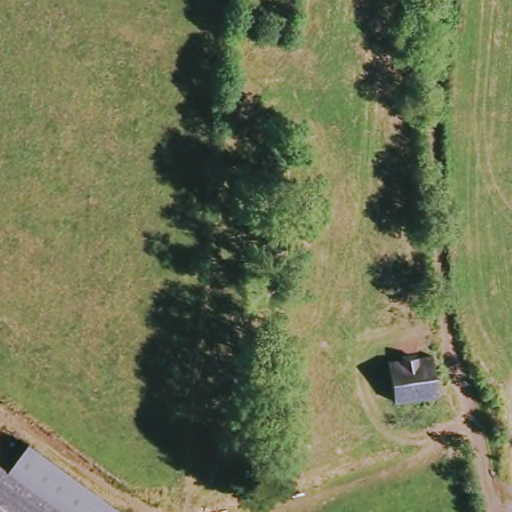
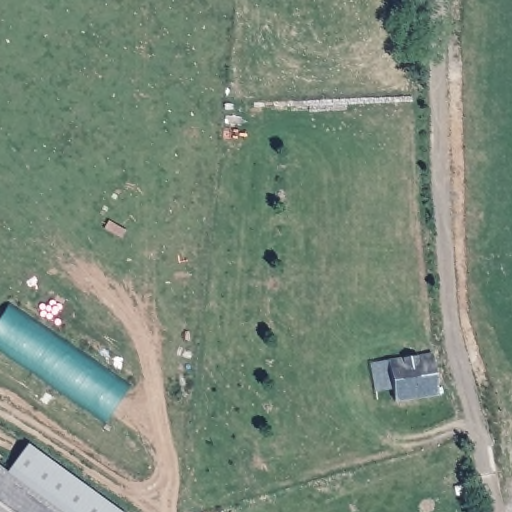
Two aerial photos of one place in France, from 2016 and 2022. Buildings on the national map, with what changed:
new [(0,349),(0,319),(10,303),(130,387),(105,423),(0,349)]
unchanged [(435,391),(392,398),(389,353),(432,348),(435,391)]
new [(10,473),(27,444),(123,512),(49,512),(0,477),(0,466),(10,473)]
unchanged [(49,512),(0,512),(0,477),(49,512)]

